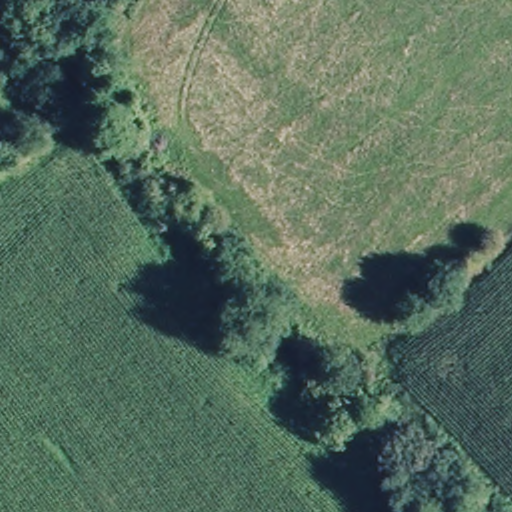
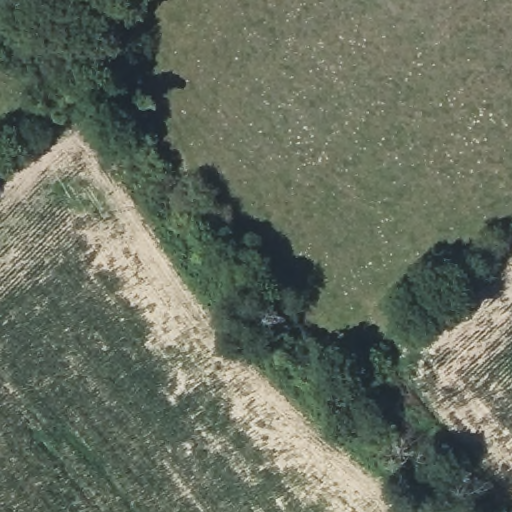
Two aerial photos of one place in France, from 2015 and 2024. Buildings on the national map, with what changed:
[]

